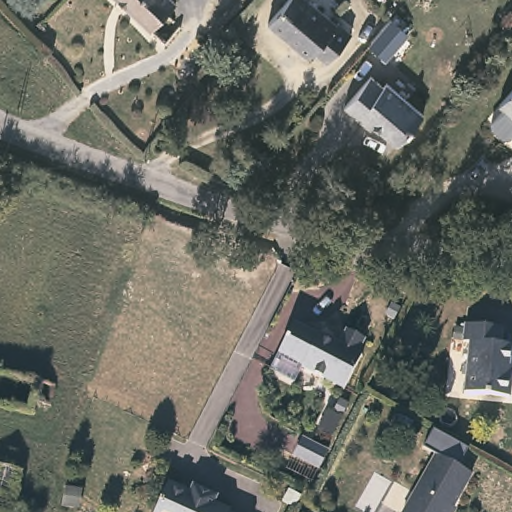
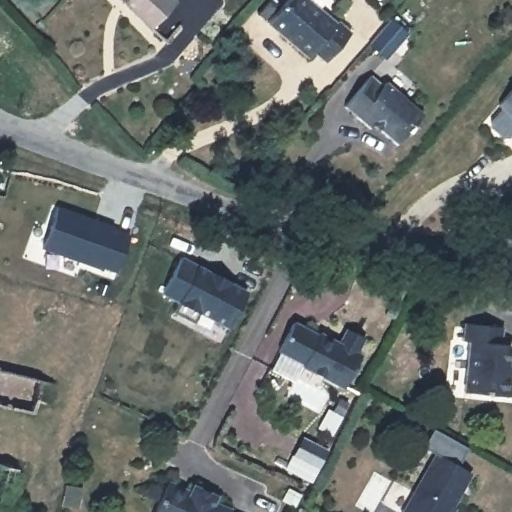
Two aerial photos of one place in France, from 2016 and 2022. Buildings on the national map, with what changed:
unchanged [(168,11),(155,27),(126,0),(176,0),(168,11)]
unchanged [(336,22),(339,18),(352,29),(328,58),(314,48),(309,52),(267,17),(281,0),(310,0),(336,22)]
unchanged [(386,86),(390,83),(426,114),(404,139),(381,121),(378,125),(351,102),(373,76),(386,86)]
unchanged [(512,76),(512,119),(509,120),(497,110),(496,104),(508,90),(504,86),(512,76)]
new [(56,206),(113,226),(113,230),(128,235),(115,272),(98,266),(98,268),(41,248),(56,206)]
new [(180,258),(248,292),(229,330),(197,313),(192,322),(171,312),(176,302),(160,294),(180,258)]
unchanged [(503,341),(512,343),(512,361),(511,368),(512,369),(512,392),(511,397),(467,391),(474,340),(467,338),(471,320),(506,326),(503,341)]
unchanged [(297,367),(299,362),(276,350),(289,326),(312,337),(314,332),(332,341),(339,328),(360,339),(353,353),(357,356),(339,387),(297,367)]
unchanged [(321,431),(343,442),(333,460),(311,449),(321,431)]
unchanged [(446,512),(402,512),(400,511),(437,450),(471,471),(446,512)]
unchanged [(16,510),(0,506),(0,456),(29,463),(16,510)]
unchanged [(199,478),(219,490),(216,497),(231,506),(230,507),(238,512),(163,512),(157,508),(174,475),(195,486),(199,478)]
unchanged [(306,497),(301,507),(290,502),(295,492),(306,497)]

